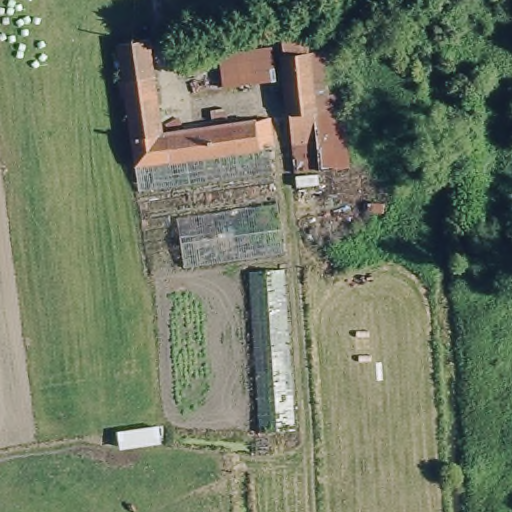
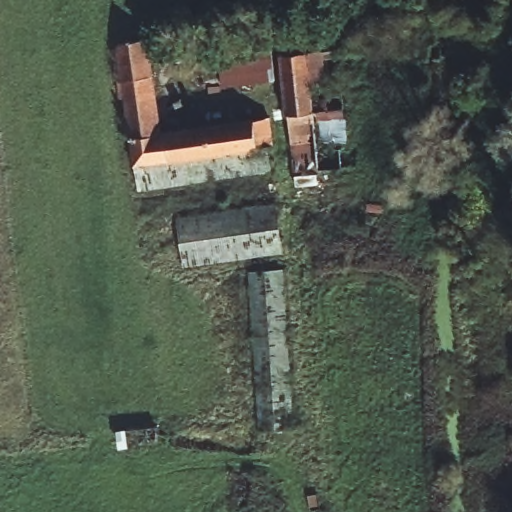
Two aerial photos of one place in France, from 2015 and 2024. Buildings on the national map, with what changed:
unchanged [(231,25),(290,19),(291,35),(335,31),(349,171),(293,176),(280,41),(233,49),(231,25)]
unchanged [(277,75),(220,84),(216,56),(273,48),(277,75)]
unchanged [(117,93),(110,55),(145,49),(159,133),(275,113),(279,143),(273,144),(130,166),(120,111),(113,112),(110,94),(117,93)]
unchanged [(273,144),(277,173),(135,195),(130,166),(273,144)]
unchanged [(184,275),(175,214),(277,196),(285,258),(242,266),(184,275)]

